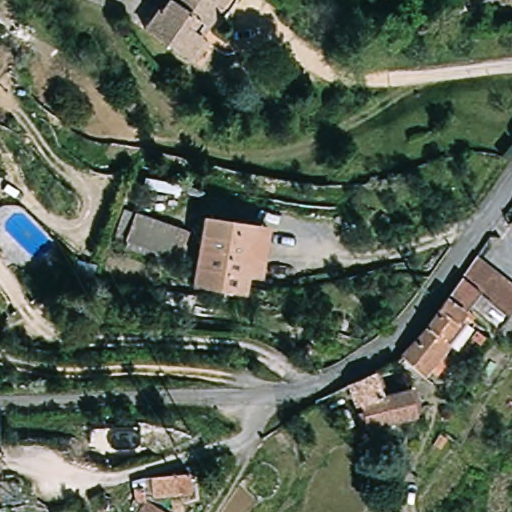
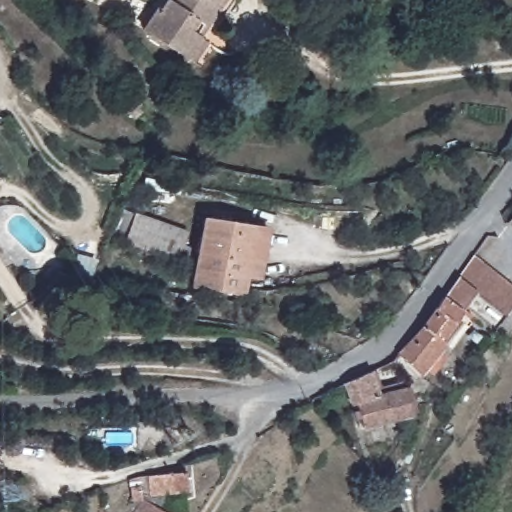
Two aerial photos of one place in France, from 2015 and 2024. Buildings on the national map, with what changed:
unchanged [(156,4),(160,7),(164,0),(215,0),(214,2),(217,4),(198,33),(186,55),(150,30),(142,25),(156,4)]
unchanged [(214,30),(218,33),(200,64),(186,55),(200,34),(198,33),(217,4),(214,2),(215,0),(232,0),(214,30)]
unchanged [(134,238),(142,212),(184,226),(176,252),(134,238)]
unchanged [(200,285),(210,216),(260,224),(273,226),(266,272),(253,270),(250,292),(200,285)]
unchanged [(502,328),(499,331),(496,333),(492,331),(490,330),(486,327),(499,303),(462,271),(476,254),(512,283),(512,314),(502,328)]
unchanged [(451,343),(425,375),(403,353),(424,329),(445,298),(443,297),(452,282),(453,282),(462,271),(498,301),(499,303),(486,327),(480,322),(467,311),(463,316),(467,319),(451,343)]
unchanged [(363,428),(357,405),(346,383),(371,374),(381,397),(407,390),(414,415),(363,428)]
unchanged [(144,496),(136,495),(134,474),(145,471),(191,467),(193,488),(147,492),(144,496)]
unchanged [(133,512),(144,496),(147,492),(175,512),(133,512)]

